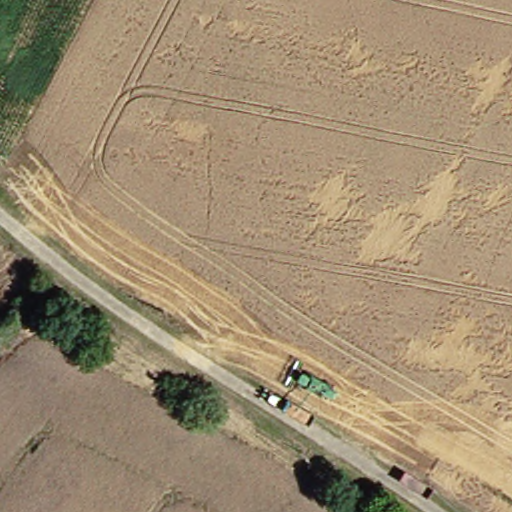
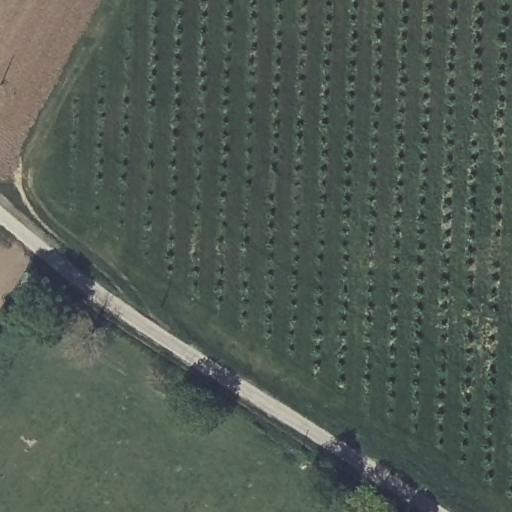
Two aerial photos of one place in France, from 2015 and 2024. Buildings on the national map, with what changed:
[]

